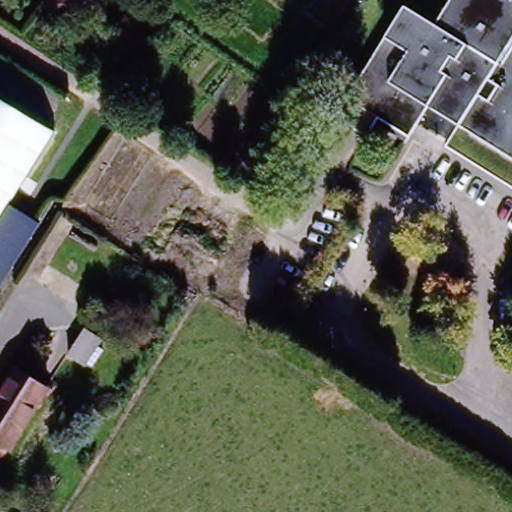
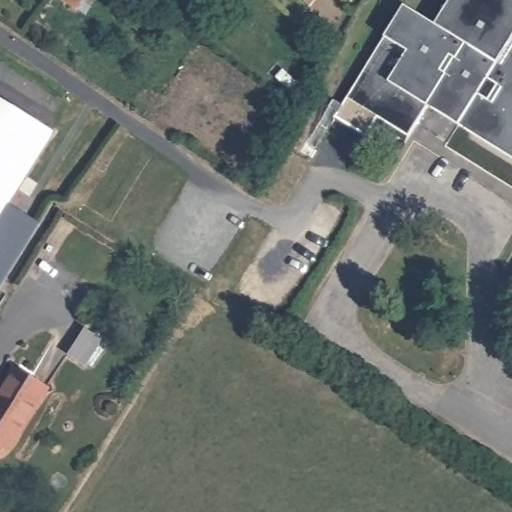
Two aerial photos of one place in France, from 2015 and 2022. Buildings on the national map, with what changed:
unchanged [(78,9),(65,0),(85,0),(78,9)]
unchanged [(334,116),(345,98),(402,6),(432,24),(447,0),(512,0),(512,159),(427,107),(409,136),(377,117),(366,136),(334,116)]
unchanged [(0,203),(0,104),(43,131),(0,203)]
unchanged [(38,224),(0,286),(0,218),(8,205),(38,224)]
unchanged [(87,368),(71,358),(86,332),(103,342),(87,368)]
unchanged [(46,390),(9,451),(0,445),(0,387),(11,369),(46,390)]

